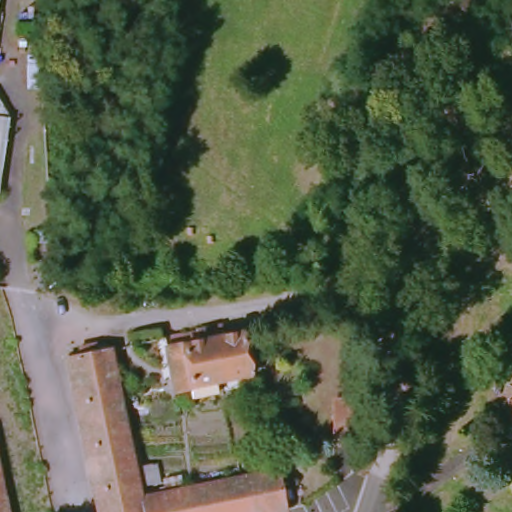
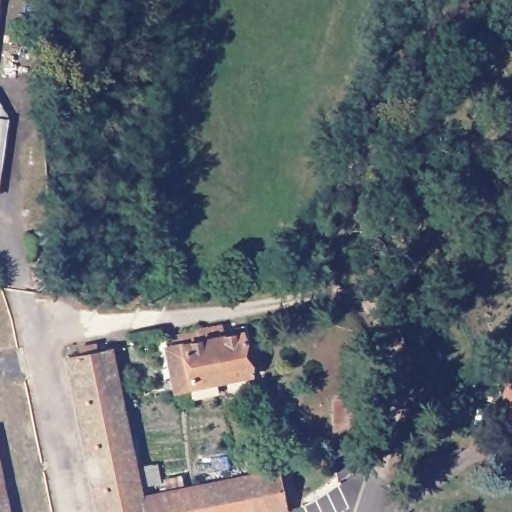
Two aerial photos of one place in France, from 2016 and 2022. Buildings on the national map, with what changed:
unchanged [(245,377),(214,384),(202,335),(214,332),(216,339),(235,335),(245,377)]
unchanged [(170,394),(159,353),(175,349),(193,345),(191,337),(202,335),(214,384),(186,391),(170,394)]
unchanged [(238,476),(262,470),(271,468),(281,508),(261,512),(99,512),(87,459),(64,360),(78,356),(77,350),(92,347),(93,353),(106,351),(141,499),(238,476)]
unchanged [(503,385),(512,356),(512,388),(503,385)]
unchanged [(331,429),(336,384),(351,385),(357,386),(354,423),(353,431),(331,429)]
unchanged [(493,427),(504,393),(512,396),(512,434),(493,427)]
unchanged [(0,486),(6,512),(0,512),(0,486)]

